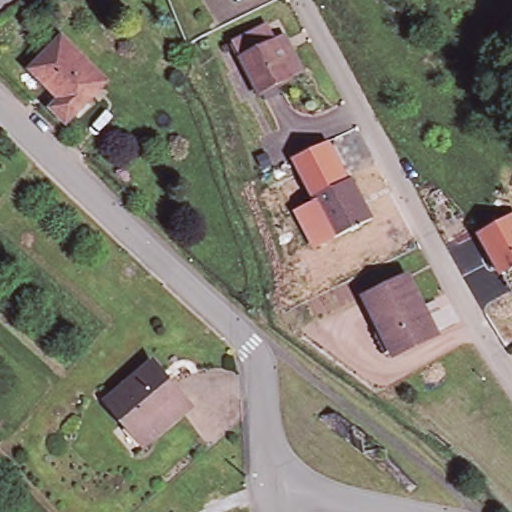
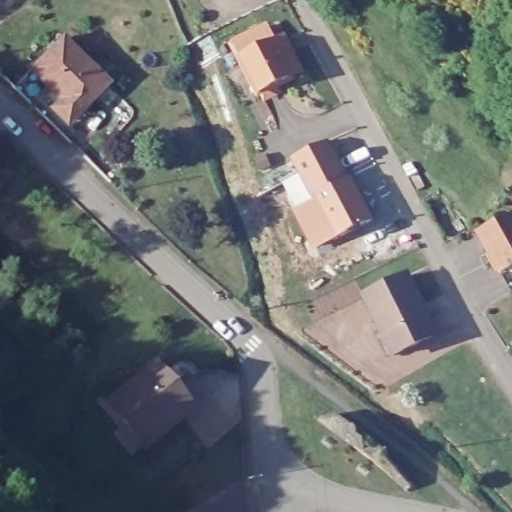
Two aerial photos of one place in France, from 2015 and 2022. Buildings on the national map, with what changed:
unchanged [(270,26),(277,39),(285,35),(303,72),(295,76),(260,94),(234,45),(264,29),(270,26)]
unchanged [(50,108),(59,99),(30,70),(60,39),(105,82),(74,114),(65,123),(50,108)]
unchanged [(359,197),(371,220),(368,221),(330,241),(310,201),(350,180),(359,197)]
unchanged [(511,215),(512,216),(512,270),(500,276),(476,234),(511,215)]
unchanged [(385,343),(362,301),(405,279),(435,337),(397,357),(392,360),(385,343)]
unchanged [(161,383),(188,410),(181,416),(144,448),(103,408),(146,368),(161,383)]

